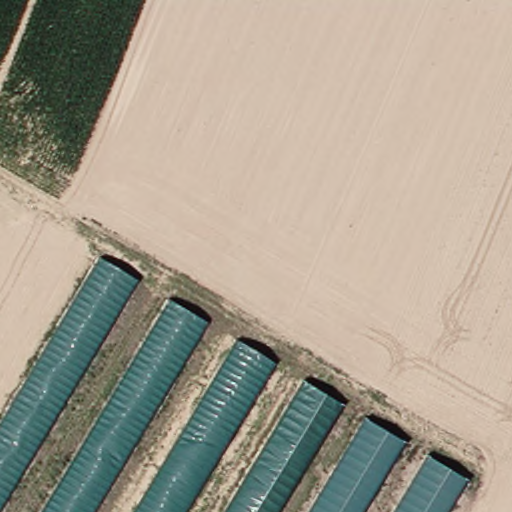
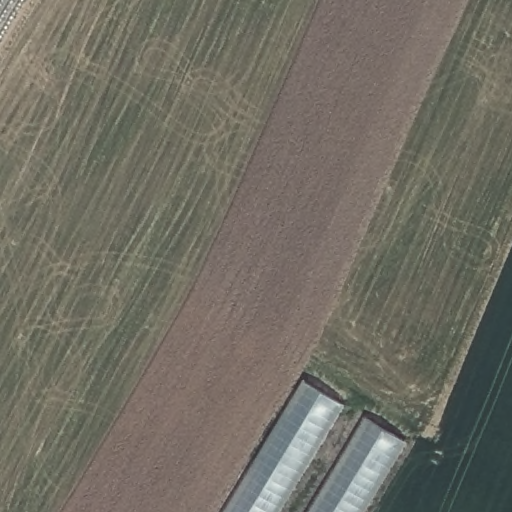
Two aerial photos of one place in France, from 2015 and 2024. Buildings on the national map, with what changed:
demolished [(25,220),(67,239),(0,350),(0,262),(25,220)]
demolished [(0,504),(0,417),(96,257),(135,279),(0,504)]
demolished [(90,512),(39,512),(166,298),(207,323),(90,512)]
demolished [(276,365),(186,512),(129,512),(234,341),(276,365)]
unchanged [(340,402),(274,512),(222,512),(301,379),(340,402)]
unchanged [(401,440),(358,512),(308,512),(365,417),(401,440)]
demolished [(444,512),(391,512),(426,454),(465,478),(444,512)]
demolished [(512,512),(484,512),(495,492),(512,502),(512,512)]

